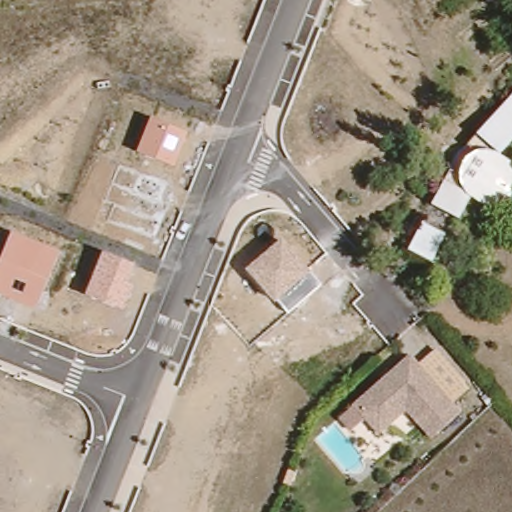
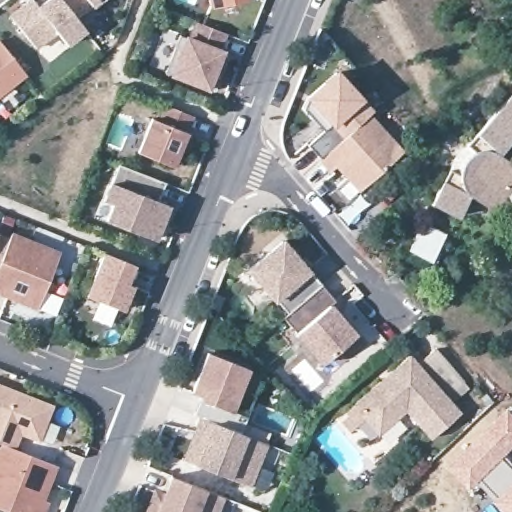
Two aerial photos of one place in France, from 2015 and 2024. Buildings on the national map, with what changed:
new [(32,0),(38,7),(48,0),(61,0),(75,18),(85,29),(66,43),(56,31),(35,47),(10,16),(31,0),(32,0)]
new [(61,0),(98,0),(75,18),(61,0)]
new [(222,65),(213,89),(166,71),(181,34),(190,38),(196,22),(225,33),(218,49),(222,50),(227,53),(222,65)]
new [(31,81),(0,106),(0,42),(31,81)]
new [(311,94),(340,67),(377,106),(324,155),(312,143),(328,129),(307,104),(312,96),(311,94)]
unchanged [(457,176),(465,162),(471,157),(475,161),(480,160),(481,156),(470,148),(486,130),(512,104),(512,146),(507,150),(512,155),(512,169),(511,171),(512,175),(512,193),(505,201),(499,206),(488,207),(477,203),(468,198),(452,228),(426,213),(450,174),(457,176)]
new [(370,113),(371,112),(406,150),(360,192),(337,167),(331,173),(319,160),(370,113)]
unchanged [(190,131),(175,169),(135,152),(150,115),(190,131)]
new [(119,164),(165,182),(158,201),(167,204),(154,238),(107,220),(114,203),(105,200),(119,164)]
unchanged [(63,252),(39,311),(0,296),(0,262),(12,231),(63,252)]
unchanged [(415,231),(441,246),(426,270),(400,256),(415,231)]
new [(0,262),(0,232),(10,237),(0,262)]
unchanged [(311,270),(323,285),(288,315),(276,300),(273,302),(245,270),(283,237),(311,270)]
unchanged [(137,264),(128,284),(135,287),(125,311),(85,296),(102,252),(137,264)]
new [(336,302),(332,303),(356,333),(322,362),(295,333),(285,318),(288,315),(323,285),(336,302)]
new [(468,387),(447,405),(413,366),(435,347),(468,387)]
new [(248,416),(241,433),(202,417),(195,415),(202,396),(193,392),(209,352),(248,368),(246,374),(262,380),(248,416)]
unchanged [(455,414),(426,439),(411,422),(401,410),(374,435),(348,406),(405,357),(455,414)]
new [(58,403),(42,442),(23,435),(17,450),(3,444),(0,443),(0,380),(58,403)]
unchanged [(348,406),(374,435),(401,410),(411,422),(372,456),(337,416),(348,406)]
new [(512,423),(512,441),(505,447),(512,454),(512,512),(505,512),(475,479),(466,487),(448,466),(502,412),(512,423)]
new [(241,433),(266,442),(250,484),(192,462),(185,459),(196,431),(202,417),(241,433)]
new [(3,444),(17,450),(58,466),(61,467),(47,502),(55,504),(52,512),(13,512),(0,507),(0,452),(3,444)]
new [(150,498),(160,502),(170,476),(222,496),(216,512),(145,512),(150,498)]

